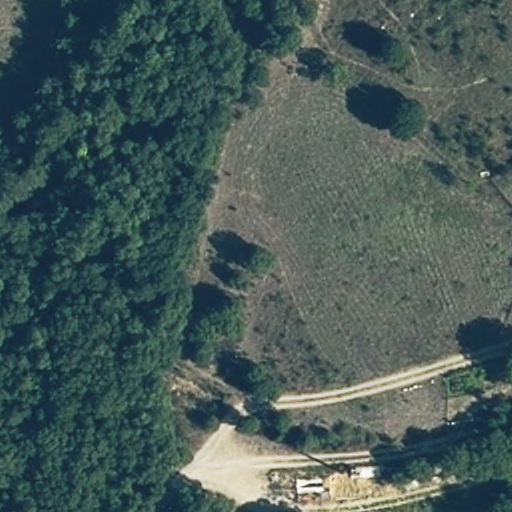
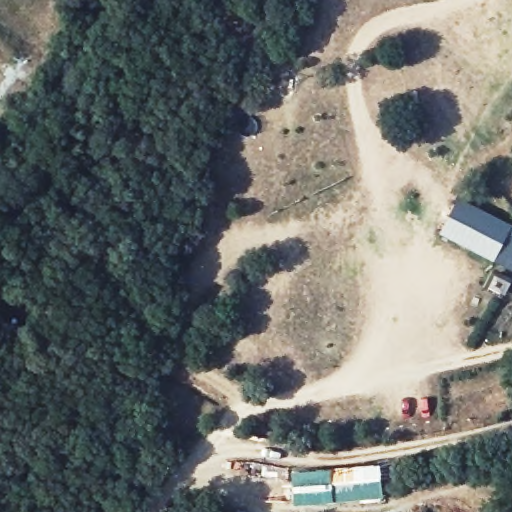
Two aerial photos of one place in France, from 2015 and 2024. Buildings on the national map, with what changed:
new [(493,262),(439,235),(457,198),(512,225),(493,262)]

